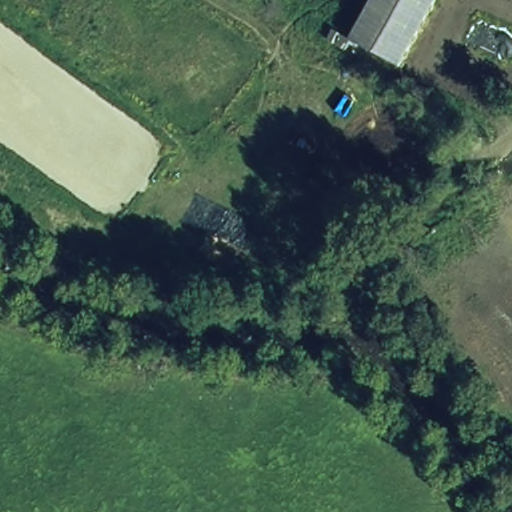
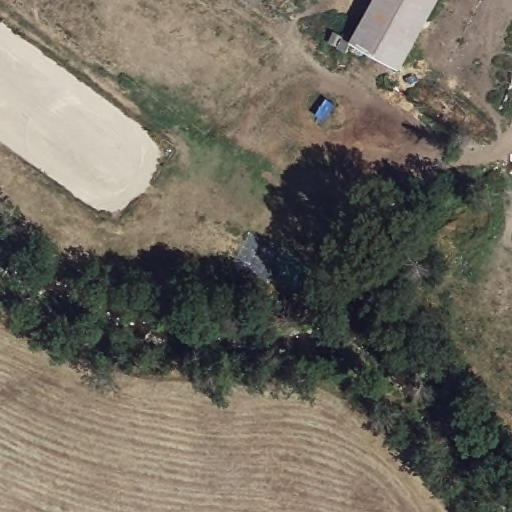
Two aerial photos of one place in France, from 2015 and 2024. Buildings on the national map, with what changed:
unchanged [(350,46),(374,0),(439,0),(403,71),(350,46)]

